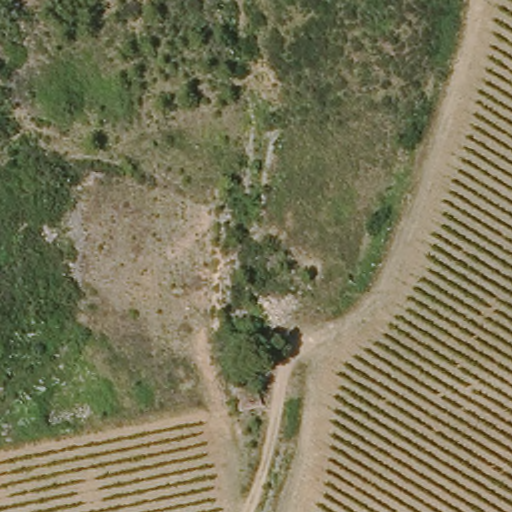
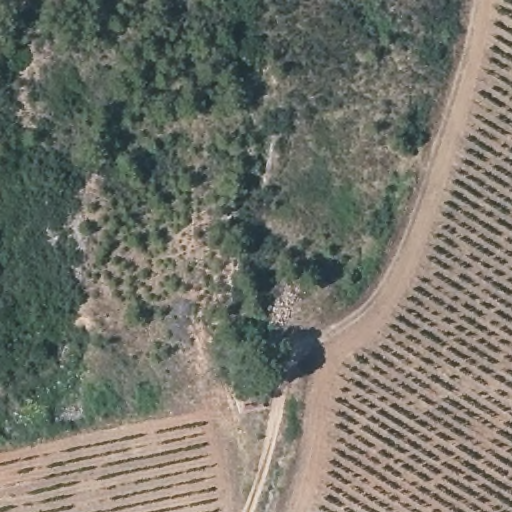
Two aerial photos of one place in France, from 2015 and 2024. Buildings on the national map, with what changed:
unchanged [(261,388),(266,412),(243,417),(240,393),(261,388)]

